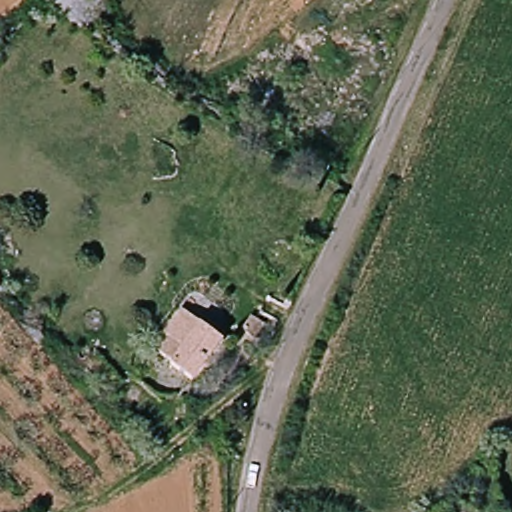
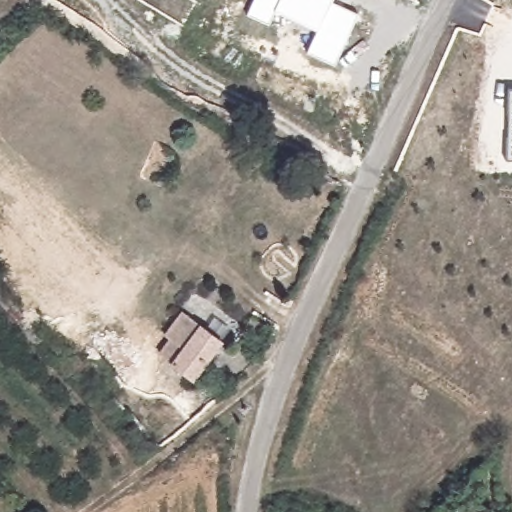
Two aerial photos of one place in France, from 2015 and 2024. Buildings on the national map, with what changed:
new [(358,16),(334,65),(307,52),(318,30),(277,10),(270,25),(248,15),(255,0),(334,0),(332,3),(358,16)]
new [(512,160),(507,160),(510,90),(512,91),(512,160)]
unchanged [(255,338),(244,329),(254,313),(266,323),(255,338)]
unchanged [(170,341),(164,335),(180,316),(185,320),(222,348),(194,386),(158,358),(170,341)]

